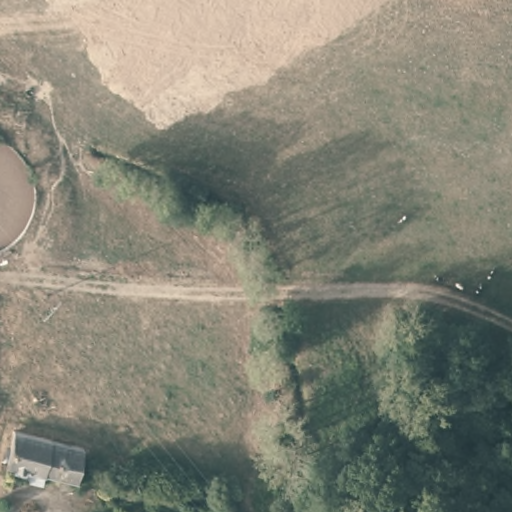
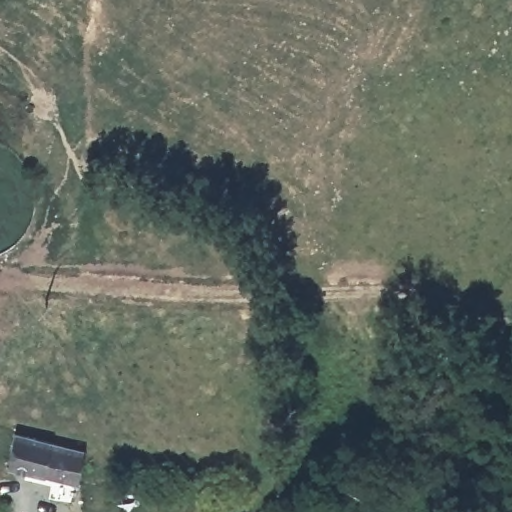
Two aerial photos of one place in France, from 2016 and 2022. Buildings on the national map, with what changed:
unchanged [(45,474),(44,485),(24,482),(26,471),(6,466),(14,431),(89,448),(80,483),(45,474)]

